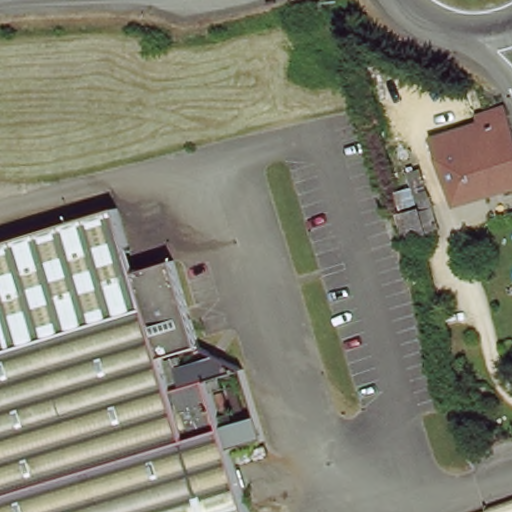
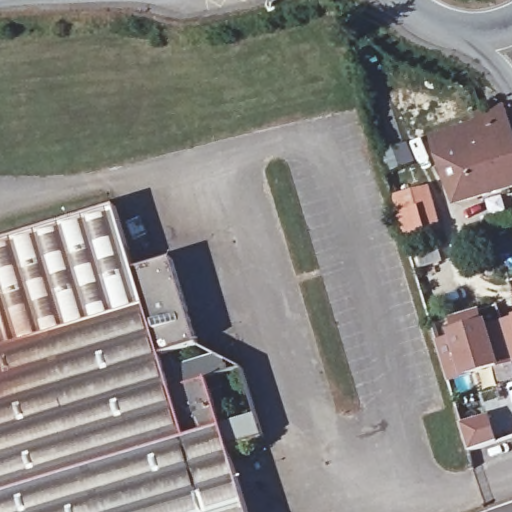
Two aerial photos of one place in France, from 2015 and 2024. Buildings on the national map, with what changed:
unchanged [(505,191),(458,202),(433,140),(480,125),(478,116),(501,107),(505,107),(508,113),(512,126),(512,189),(505,191)]
unchanged [(419,198),(431,194),(435,206),(422,210),(427,232),(406,236),(400,214),(421,207),(419,198)]
unchanged [(138,274),(175,262),(202,347),(165,359),(176,393),(190,440),(0,499),(0,246),(118,210),(138,274)]
new [(450,339),(449,334),(454,332),(450,323),(484,310),(488,323),(500,320),(512,359),(512,365),(501,367),(464,380),(452,386),(438,342),(450,339)]
new [(501,321),(512,317),(512,355),(501,321)]
unchanged [(182,358),(188,378),(175,382),(169,362),(182,358)]
unchanged [(176,393),(246,372),(268,442),(233,453),(245,492),(245,493),(184,512),(0,512),(0,499),(190,440),(176,393)]
new [(489,413),(498,442),(470,450),(462,423),(489,413)]
unchanged [(252,512),(184,512),(245,493),(252,512)]

